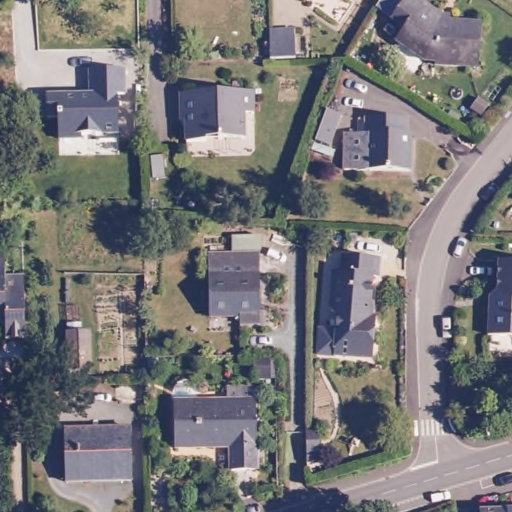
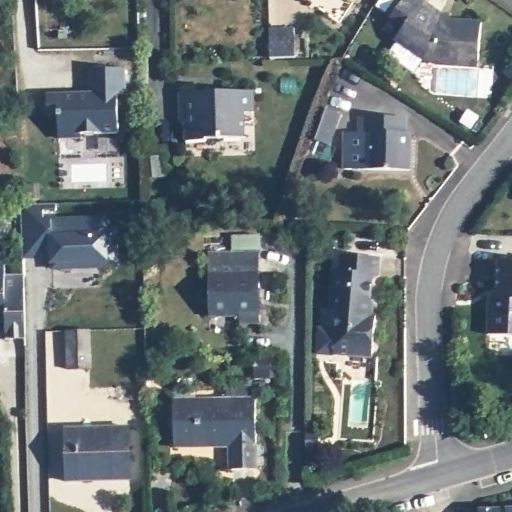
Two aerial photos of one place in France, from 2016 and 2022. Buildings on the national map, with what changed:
unchanged [(479,57),(465,59),(438,62),(438,58),(423,60),(393,41),(401,27),(387,18),(399,0),(419,0),(415,7),(433,20),(465,16),(475,14),(479,57)]
unchanged [(305,54),(294,54),(267,55),(267,27),(293,27),(293,35),(303,34),(305,54)]
unchanged [(118,92),(119,132),(80,134),(80,139),(60,139),(57,117),(47,116),(47,93),(89,93),(89,70),(124,68),(124,91),(118,92)]
unchanged [(217,89),(253,88),(254,109),(244,110),(244,133),(217,134),(217,89)]
unchanged [(204,134),(205,137),(187,137),(187,116),(182,116),(182,89),(217,89),(217,134),(204,134)]
unchanged [(410,115),(410,131),(415,131),(415,167),(350,166),(351,131),(371,131),(370,114),(410,115)]
unchanged [(337,126),(327,156),(312,152),(325,121),(337,126)]
new [(21,206),(54,205),(55,218),(107,217),(107,232),(120,231),(119,267),(83,269),(83,274),(55,276),(55,265),(50,266),(50,257),(24,259),(21,206)]
unchanged [(255,245),(257,307),(219,309),(207,309),(206,246),(219,246),(255,245)]
unchanged [(372,254),(372,274),(365,274),(363,312),(368,312),(365,355),(327,352),(330,313),(323,305),(326,268),(333,269),(333,252),(372,254)]
unchanged [(5,348),(4,331),(0,331),(0,258),(3,258),(4,297),(23,297),(25,347),(5,348)]
unchanged [(512,259),(512,333),(485,333),(486,295),(493,294),(495,259),(512,259)]
unchanged [(65,323),(91,323),(90,365),(65,365),(65,323)]
unchanged [(220,396),(252,395),(254,464),(226,465),(226,441),(220,441),(220,396)]
unchanged [(172,442),(172,397),(220,396),(220,441),(172,442)]
unchanged [(65,425),(131,423),(131,476),(65,478),(65,425)]
unchanged [(314,425),(325,425),(325,429),(325,440),(314,440),(314,429),(314,425)]

